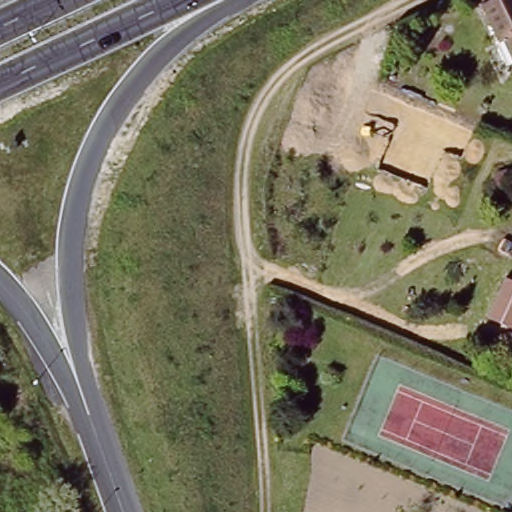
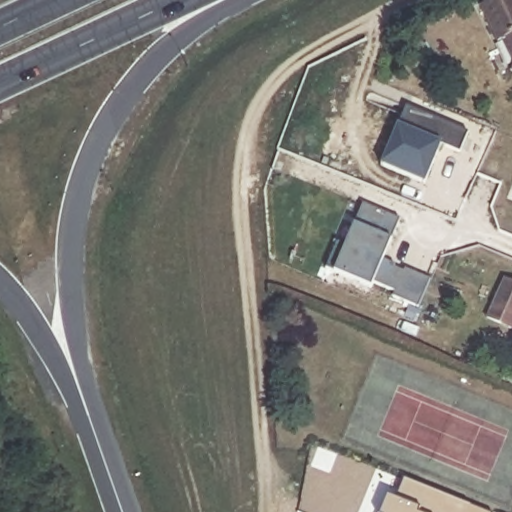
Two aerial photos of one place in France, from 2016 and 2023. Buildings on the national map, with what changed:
unchanged [(499,0),(512,0),(512,59),(503,41),(496,45),(483,19),(480,10),(488,5),(499,0)]
new [(460,151),(441,144),(425,185),(381,166),(398,125),(406,105),(468,131),(460,151)]
new [(392,239),(384,260),(396,264),(395,267),(405,271),(406,268),(430,279),(420,307),(394,297),(395,292),(373,283),(372,287),(334,271),(326,267),(337,242),(345,245),(354,224),(362,202),(400,218),(392,239)]
new [(503,280),(512,284),(512,331),(485,319),(490,307),(494,300),(503,280)]
new [(389,495),(397,498),(405,477),(412,480),(490,512),(382,512),(389,495)]

